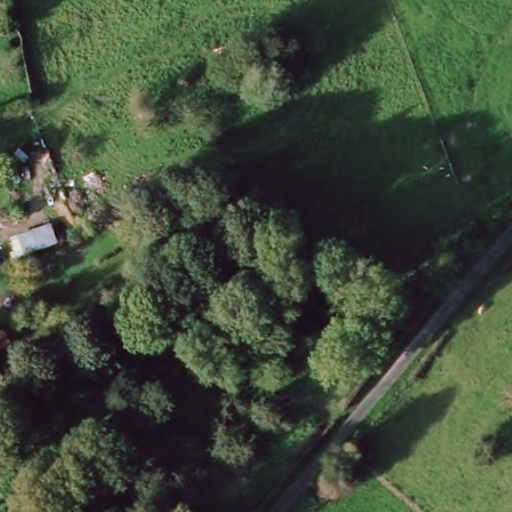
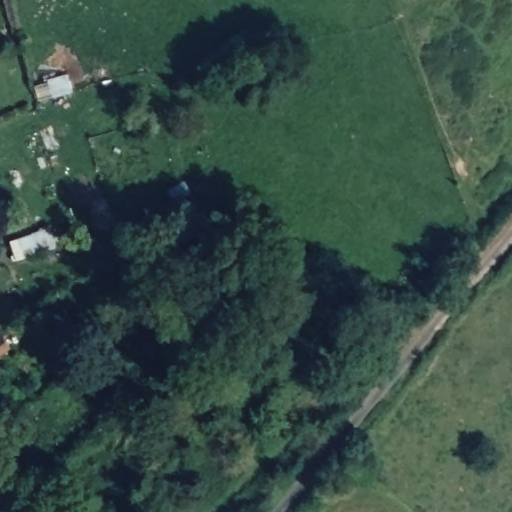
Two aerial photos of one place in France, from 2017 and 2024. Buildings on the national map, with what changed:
unchanged [(1,333),(8,344),(3,347),(0,349),(0,334),(1,333)]

